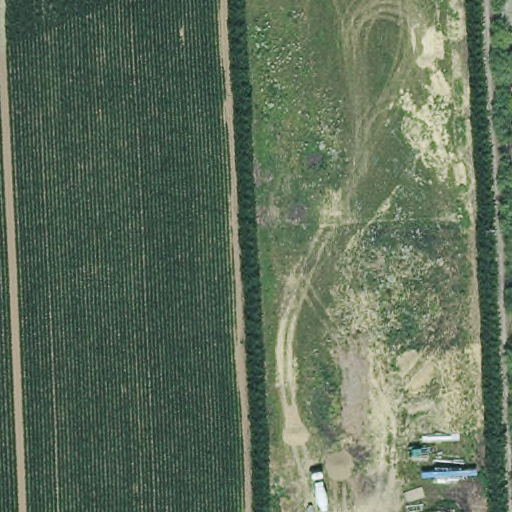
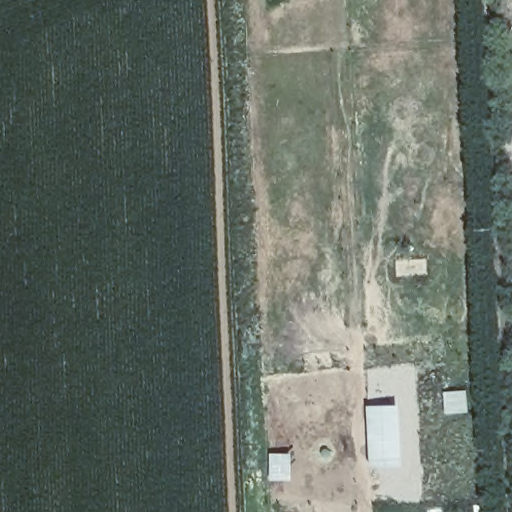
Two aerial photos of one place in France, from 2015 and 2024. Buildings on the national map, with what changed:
new [(398,402),(402,464),(367,465),(365,403),(398,402)]

